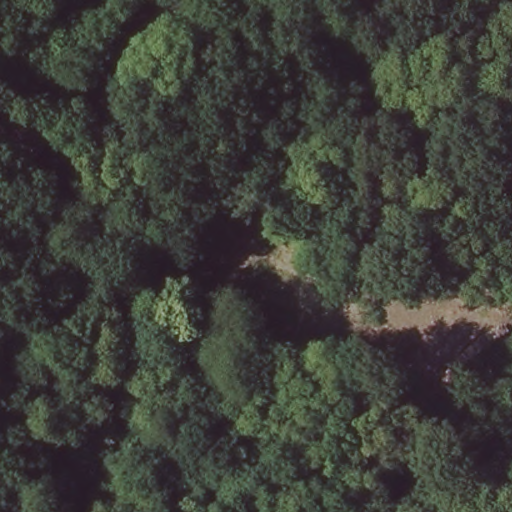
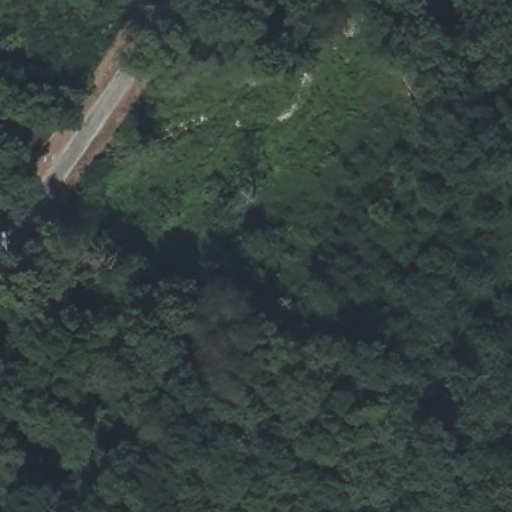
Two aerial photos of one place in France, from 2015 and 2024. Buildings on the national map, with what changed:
unchanged [(32,162),(0,141),(0,118),(8,106),(50,134),(32,162)]

